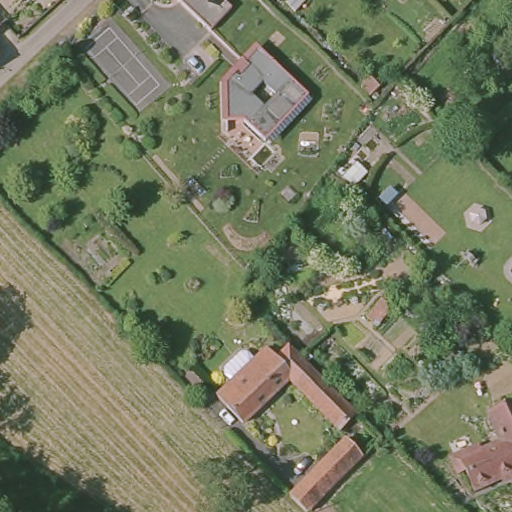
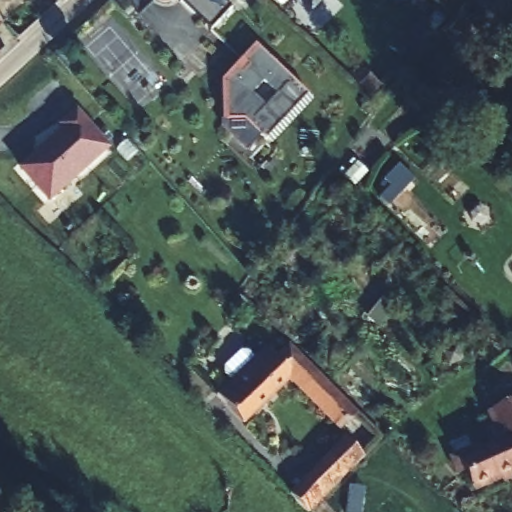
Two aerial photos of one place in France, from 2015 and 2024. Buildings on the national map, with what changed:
unchanged [(65,0),(69,0),(67,2),(65,0)]
unchanged [(233,11),(210,33),(179,0),(222,0),(233,11)]
new [(313,10),(303,0),(324,0),(313,10)]
unchanged [(308,99),(264,144),(244,124),(226,125),(224,86),(226,84),(237,73),(241,76),(247,70),(243,66),(258,51),(308,99)]
new [(75,115),(106,152),(45,202),(18,169),(63,132),(59,128),(75,115)]
unchanged [(248,363),(254,356),(259,351),(268,359),(282,343),(293,354),(352,414),(334,431),(285,379),(242,425),(215,401),(227,387),(248,363)]
unchanged [(477,499),(468,479),(460,483),(454,468),(480,458),(482,463),(505,453),(492,423),(512,415),(512,485),(477,499)]
unchanged [(338,445),(357,461),(322,502),(320,504),(312,512),(299,512),(287,499),(300,486),(303,482),(338,445)]

